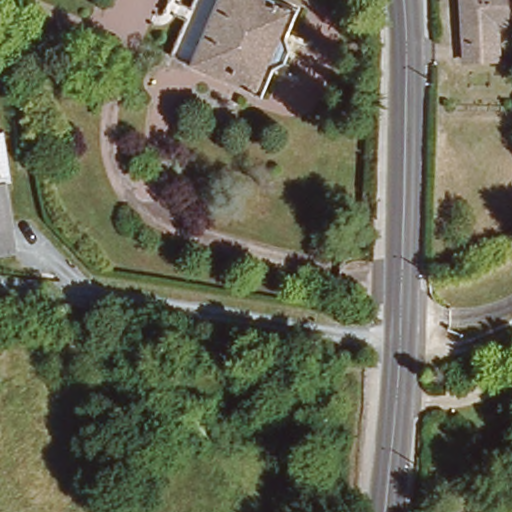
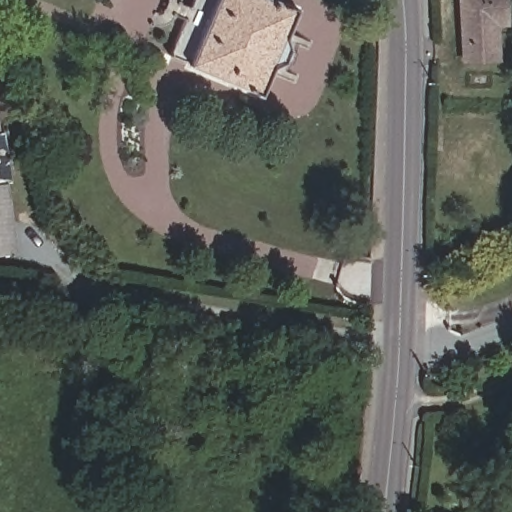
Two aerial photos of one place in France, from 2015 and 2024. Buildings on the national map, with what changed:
unchanged [(195,0),(277,0),(270,18),(276,29),(267,49),(257,52),(245,80),(175,51),(195,0)]
unchanged [(490,55),(461,54),(461,0),(497,0),(497,17),(491,17),(490,55)]
unchanged [(8,182),(0,184),(0,133),(8,182)]
unchanged [(0,257),(0,187),(7,230),(11,255),(0,257)]
unchanged [(282,455),(267,451),(271,435),(286,439),(282,455)]

